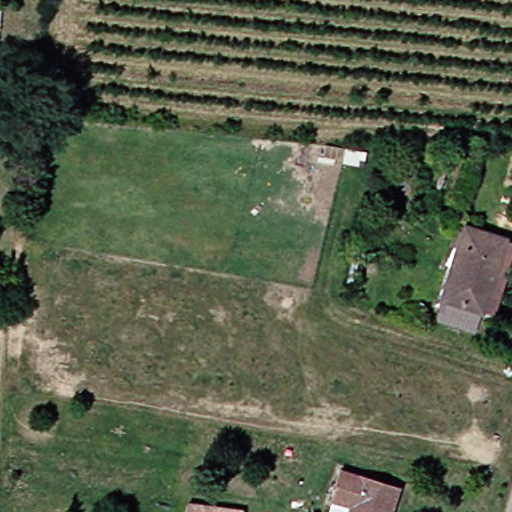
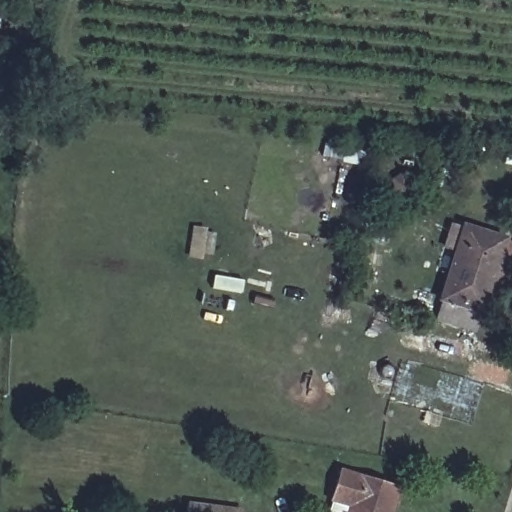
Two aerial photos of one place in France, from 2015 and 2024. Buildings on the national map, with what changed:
unchanged [(462,227),(502,242),(512,246),(512,248),(490,315),(477,312),(470,333),(430,321),(462,227)]
unchanged [(336,512),(337,507),(320,501),(329,469),(396,488),(389,512),(336,512)]
unchanged [(212,510),(211,512),(182,512),(183,506),(212,510)]
unchanged [(230,512),(211,512),(212,510),(230,512)]

